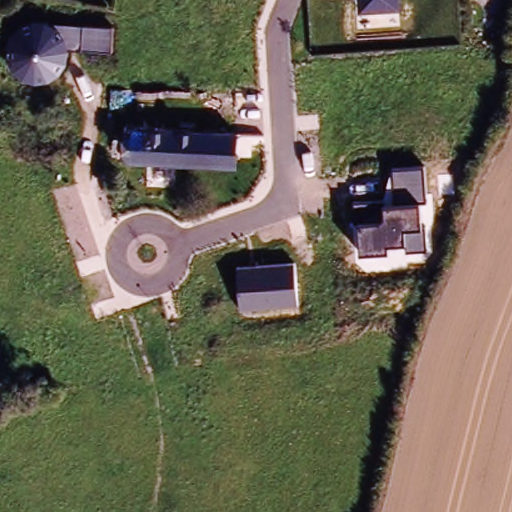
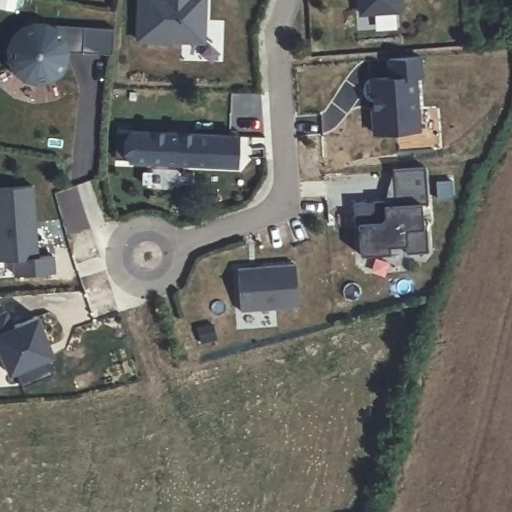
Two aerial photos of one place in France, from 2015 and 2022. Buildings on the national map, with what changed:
unchanged [(400,0),(400,11),(359,12),(358,0),(400,0)]
unchanged [(112,51),(69,50),(69,55),(65,66),(59,75),(49,81),(39,83),(28,83),(21,79),(16,74),(11,69),(7,55),(7,46),(11,36),(15,30),(20,26),(31,21),(52,23),(114,28),(112,51)]
new [(421,55),(423,76),(415,78),(421,132),(372,134),(369,78),(387,75),(387,57),(421,55)]
unchanged [(234,163),(127,161),(127,126),(198,128),(199,111),(229,111),(229,129),(233,129),(234,163)]
unchanged [(385,199),(394,169),(425,166),(427,202),(422,203),(423,226),(426,251),(406,253),(406,243),(390,244),(390,252),(360,254),(359,222),(356,200),(385,199)]
new [(52,255),(53,272),(14,275),(12,259),(0,260),(0,187),(31,185),(36,256),(52,255)]
unchanged [(295,263),(297,306),(241,311),(237,267),(295,263)]
new [(37,314),(54,356),(47,359),(54,374),(23,387),(16,371),(9,375),(0,356),(0,311),(6,308),(14,323),(37,314)]

